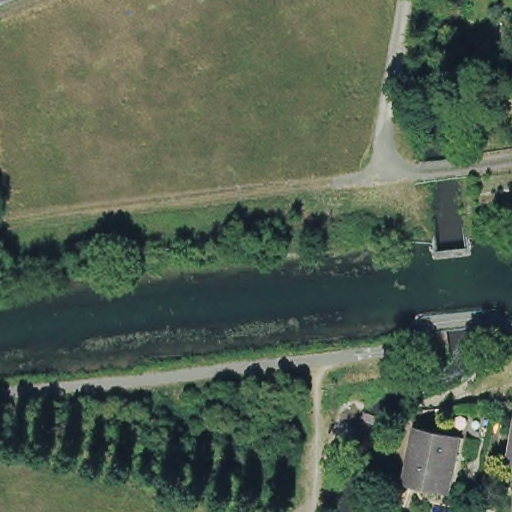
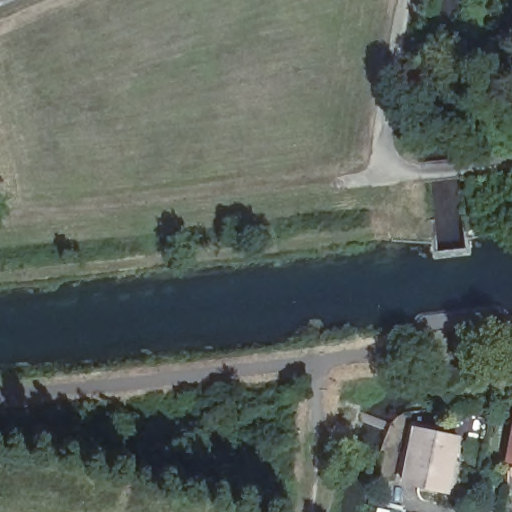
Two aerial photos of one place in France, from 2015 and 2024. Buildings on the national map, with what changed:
unchanged [(403,480),(415,426),(458,436),(446,490),(403,480)]

